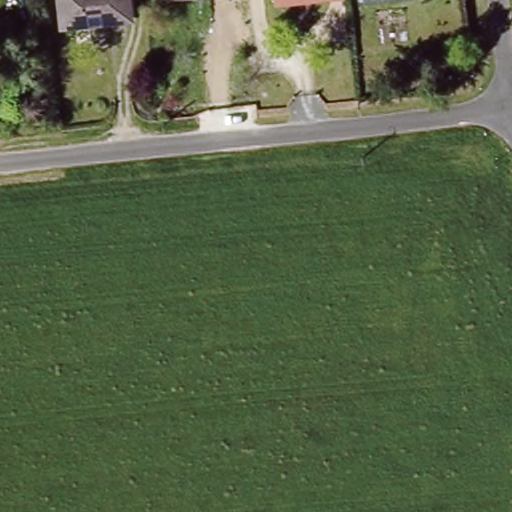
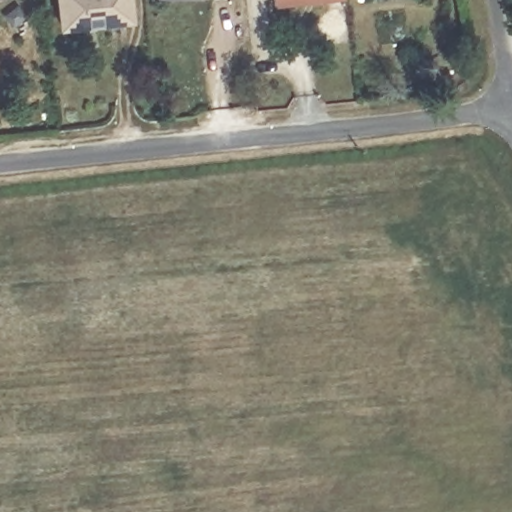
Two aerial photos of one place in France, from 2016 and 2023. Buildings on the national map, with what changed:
unchanged [(131,23),(62,29),(58,0),(128,0),(131,23)]
unchanged [(154,3),(154,0),(197,0),(154,3)]
unchanged [(282,0),(306,0),(282,2),(282,0)]
unchanged [(357,4),(357,0),(415,0),(357,4)]

